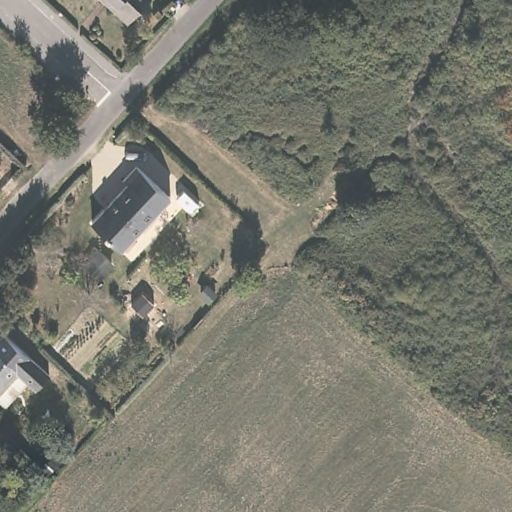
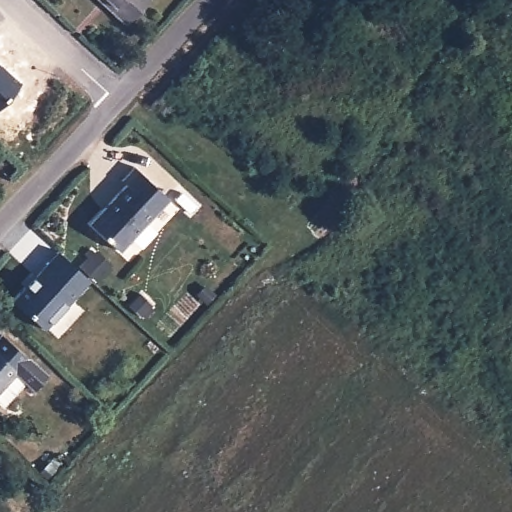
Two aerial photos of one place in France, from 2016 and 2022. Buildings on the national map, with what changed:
unchanged [(128,22),(112,8),(116,5),(112,0),(148,0),(128,22)]
unchanged [(171,198),(121,250),(91,222),(128,184),(123,179),(136,166),(171,198)]
new [(13,299),(40,269),(43,271),(59,252),(89,280),(70,299),(44,328),(13,299)]
unchanged [(0,392),(0,338),(8,330),(52,370),(40,382),(34,376),(10,403),(0,392)]

